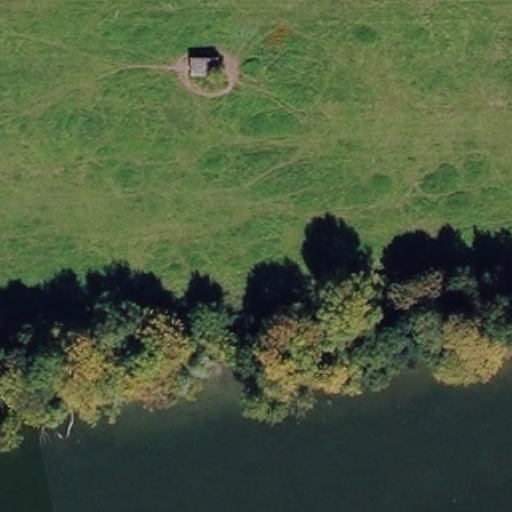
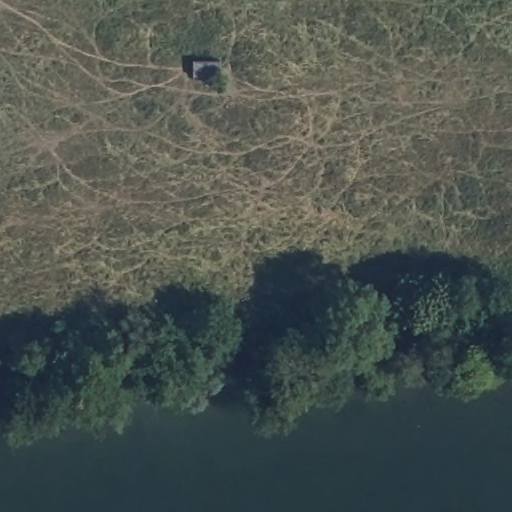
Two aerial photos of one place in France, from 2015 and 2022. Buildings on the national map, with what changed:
unchanged [(223,56),(226,73),(192,74),(193,56),(223,56)]

